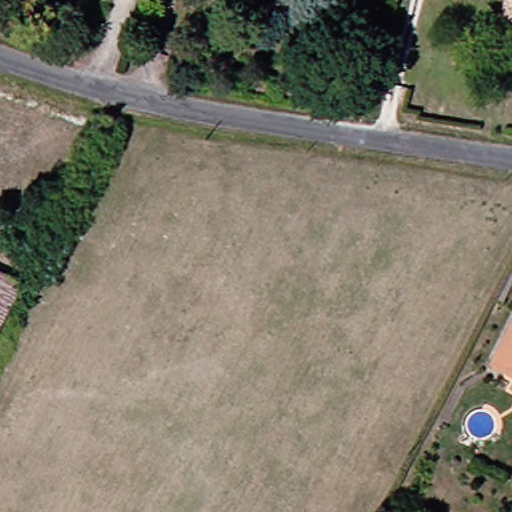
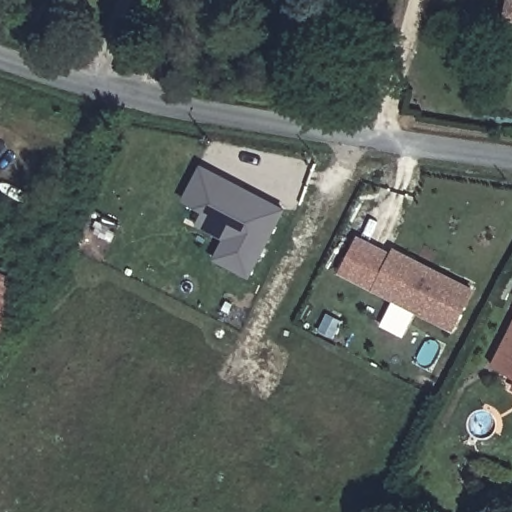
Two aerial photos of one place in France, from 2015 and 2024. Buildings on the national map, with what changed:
unchanged [(499,0),(512,0),(512,21),(496,18),(499,0)]
new [(182,200),(200,167),(240,188),(253,195),(282,210),(247,277),(213,259),(224,239),(196,225),(203,211),(182,200)]
new [(357,238),(389,255),(373,288),(340,271),(357,238)]
new [(373,288),(389,255),(391,250),(467,288),(447,326),(416,309),(402,335),(381,324),(394,298),(373,288)]
unchanged [(28,285),(0,336),(0,270),(28,285)]
unchanged [(512,293),(512,304),(507,301),(512,293)]
unchanged [(512,307),(512,382),(482,366),(512,307)]

